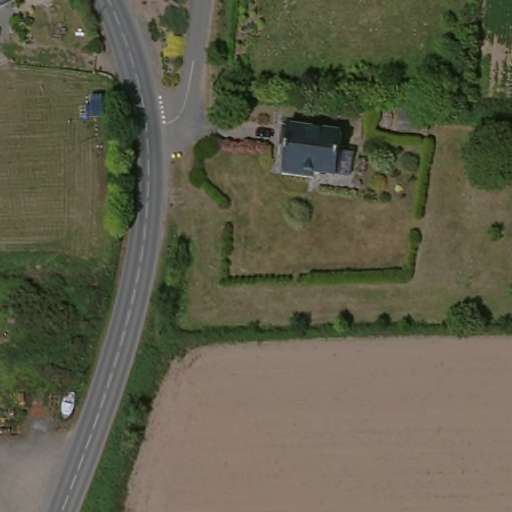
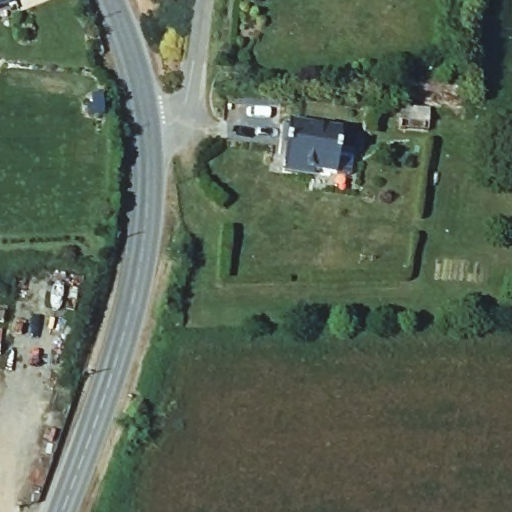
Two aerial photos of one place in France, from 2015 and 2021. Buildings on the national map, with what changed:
unchanged [(0,3),(0,0),(8,0),(0,3)]
unchanged [(349,171),(334,171),(281,167),(283,147),(276,146),(278,125),(336,130),(336,150),(348,150),(349,171)]

